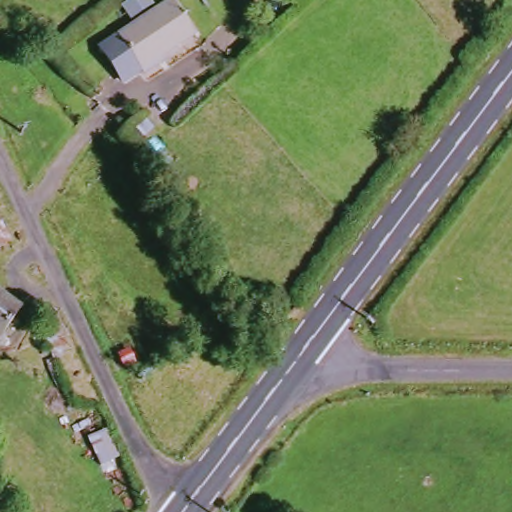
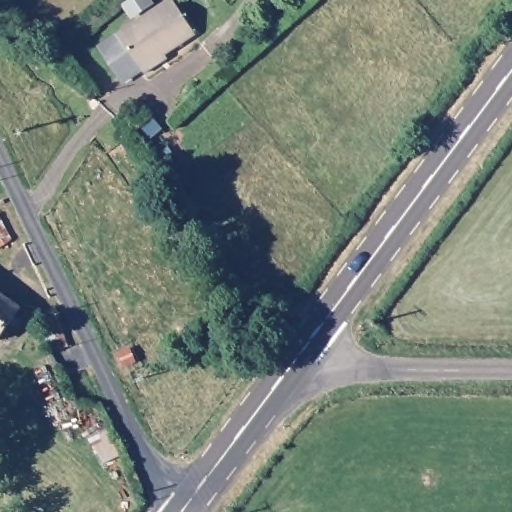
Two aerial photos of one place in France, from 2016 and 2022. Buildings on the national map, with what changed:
unchanged [(165,0),(185,0),(202,25),(170,47),(172,52),(152,67),(149,63),(132,75),(107,40),(125,28),(165,0)]
unchanged [(30,312),(24,321),(12,311),(0,326),(0,288),(30,312)]
unchanged [(125,347),(130,359),(121,363),(115,352),(125,347)]

